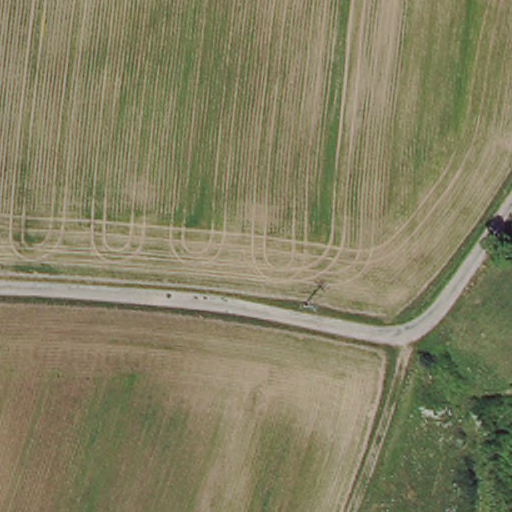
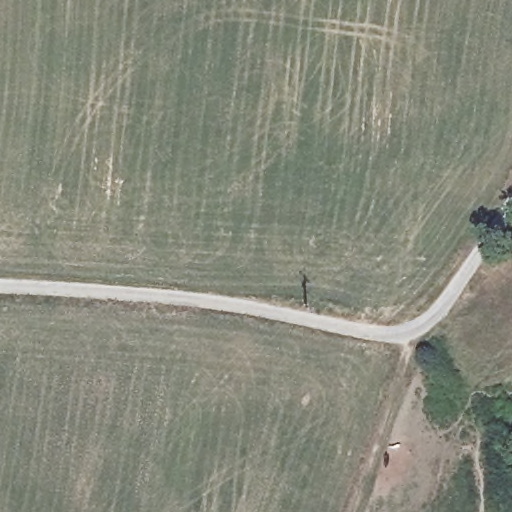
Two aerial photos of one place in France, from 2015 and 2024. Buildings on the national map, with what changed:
[]

